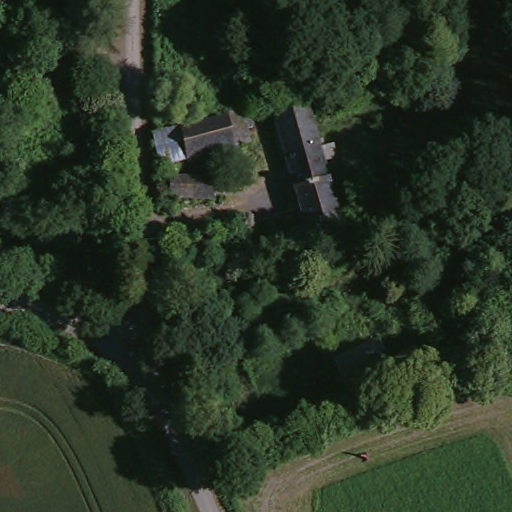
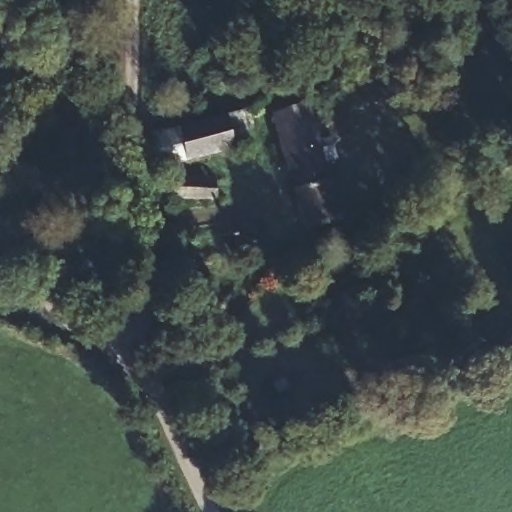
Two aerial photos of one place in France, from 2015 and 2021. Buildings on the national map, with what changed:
unchanged [(333,218),(306,227),(268,117),(296,107),(333,218)]
unchanged [(157,171),(156,144),(168,140),(242,119),(249,146),(191,161),(186,147),(172,153),(176,165),(157,172),(157,171)]
unchanged [(211,206),(167,199),(169,180),(213,185),(211,206)]

